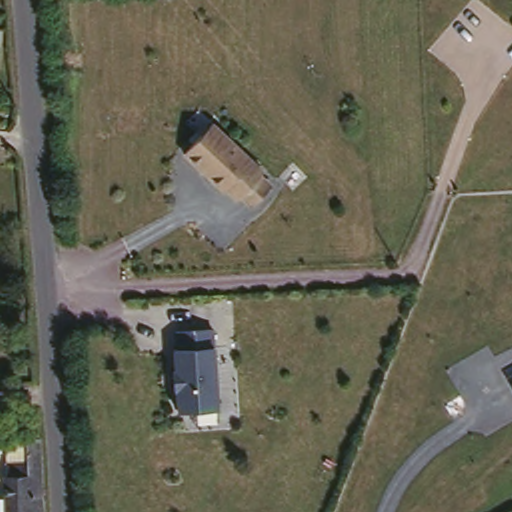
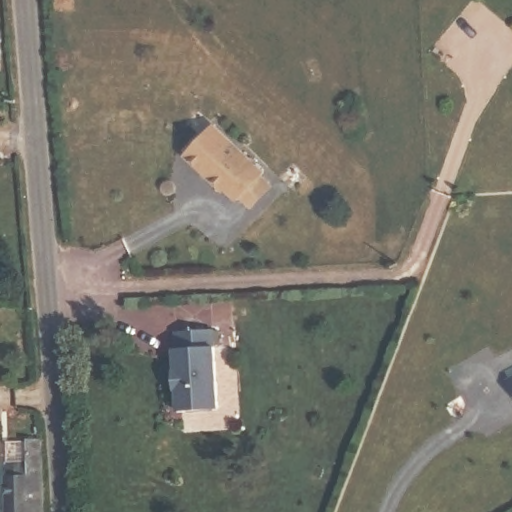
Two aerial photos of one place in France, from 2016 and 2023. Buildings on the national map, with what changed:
unchanged [(267,165),(262,173),(272,182),(251,207),(240,195),(236,200),(185,155),(212,119),(267,165)]
unchanged [(177,329),(214,324),(216,346),(220,405),(180,409),(177,351),(177,329)]
unchanged [(507,375),(512,372),(512,385),(507,375)]
unchanged [(38,512),(4,512),(0,463),(0,446),(19,445),(17,429),(31,429),(36,489),(38,512)]

